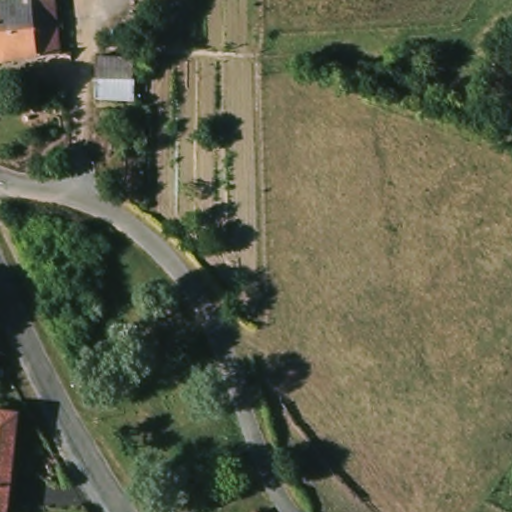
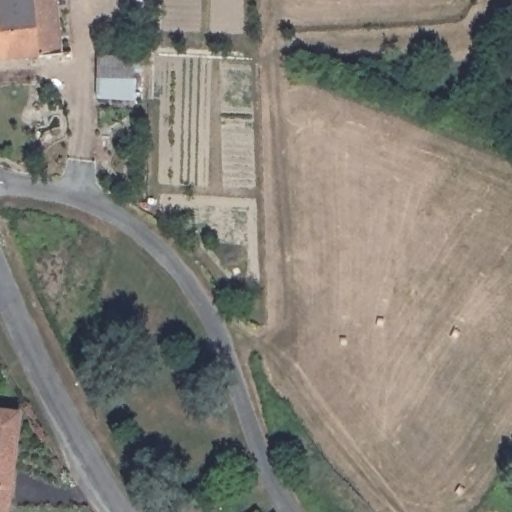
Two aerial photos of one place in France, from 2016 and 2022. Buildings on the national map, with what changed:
unchanged [(59,0),(61,35),(44,35),(43,50),(0,53),(0,0),(59,0)]
unchanged [(100,56),(132,55),(132,99),(100,99),(100,56)]
unchanged [(18,415),(11,481),(8,512),(0,512),(0,412),(18,415)]
unchanged [(266,508),(270,512),(261,512),(266,508)]

